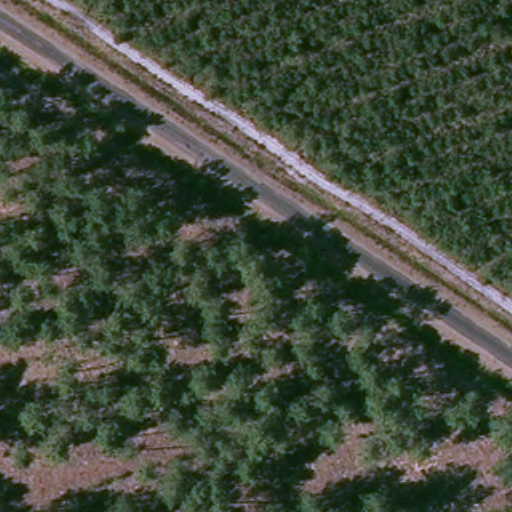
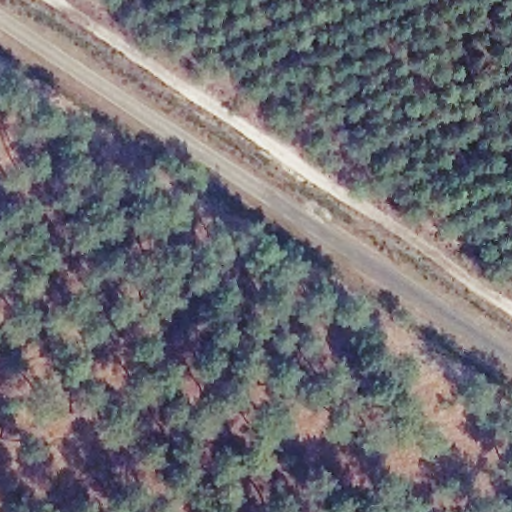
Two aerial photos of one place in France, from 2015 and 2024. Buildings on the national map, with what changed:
[]

